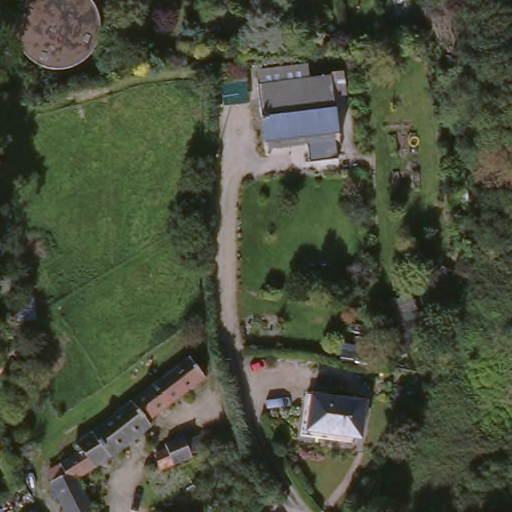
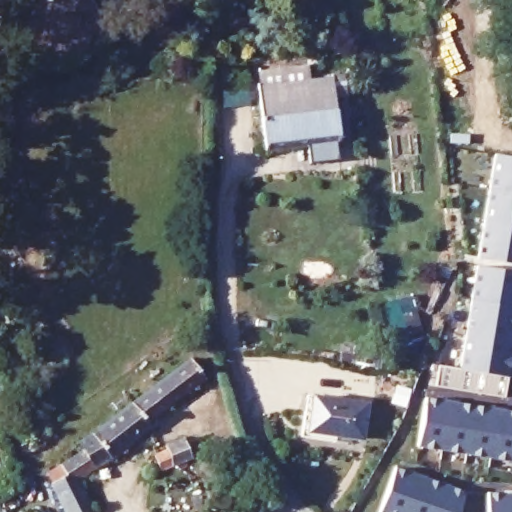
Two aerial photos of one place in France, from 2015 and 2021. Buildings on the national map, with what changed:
unchanged [(228,69),(231,84),(209,87),(206,73),(228,69)]
unchanged [(303,159),(301,148),(259,153),(253,92),(338,83),(341,104),(330,105),(334,144),(329,145),(331,156),(303,159)]
new [(476,257),(493,143),(512,147),(512,261),(476,257)]
new [(437,364),(459,368),(475,264),(512,270),(512,358),(509,357),(507,373),(504,394),(436,383),(437,364)]
new [(423,336),(392,346),(378,303),(409,294),(423,336)]
unchanged [(69,464),(65,457),(94,436),(178,371),(179,374),(186,368),(198,382),(191,388),(191,389),(155,417),(159,423),(137,440),(103,467),(76,485),(80,492),(73,498),(80,512),(52,512),(43,495),(55,487),(49,477),(69,464)]
new [(416,442),(424,395),(512,410),(512,459),(416,442)]
unchanged [(363,443),(339,440),(338,443),(303,438),(310,399),(369,409),(363,443)]
unchanged [(186,468),(186,470),(156,479),(151,466),(164,462),(163,459),(183,452),(184,456),(193,453),(197,463),(198,464),(186,468)]
new [(379,512),(393,466),(462,488),(455,512),(379,512)]
new [(487,512),(488,492),(512,493),(512,512),(487,512)]

